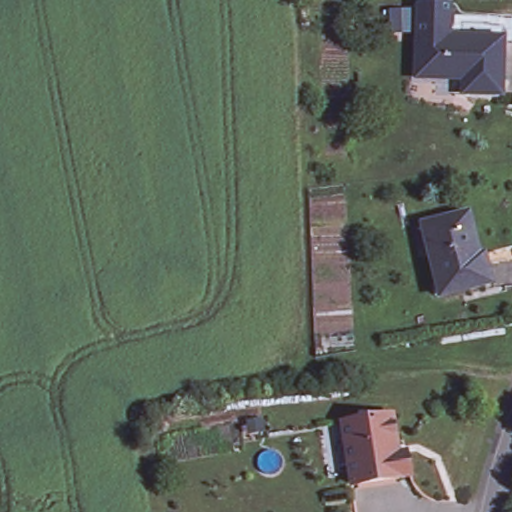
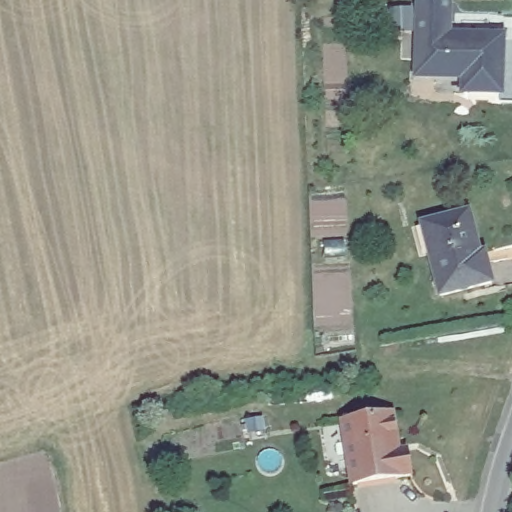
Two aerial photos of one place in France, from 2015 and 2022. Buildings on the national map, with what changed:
unchanged [(503,93),(467,92),(468,77),(421,75),(423,35),(425,14),(425,2),(454,1),(453,10),(453,36),(506,38),(503,93)]
unchanged [(396,9),(417,8),(417,15),(417,26),(396,27),(396,17),(396,9)]
unchanged [(471,211),(484,263),(489,262),(494,283),(445,295),(425,223),(471,211)]
unchanged [(260,413),(262,424),(246,426),(245,416),(260,413)]
unchanged [(356,485),(346,424),(395,416),(401,453),(410,452),(413,474),(356,485)]

